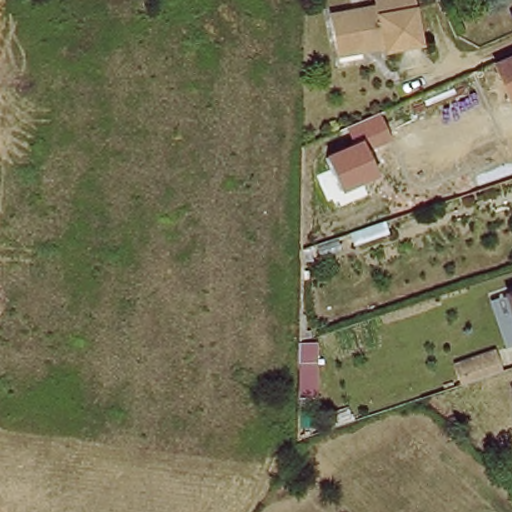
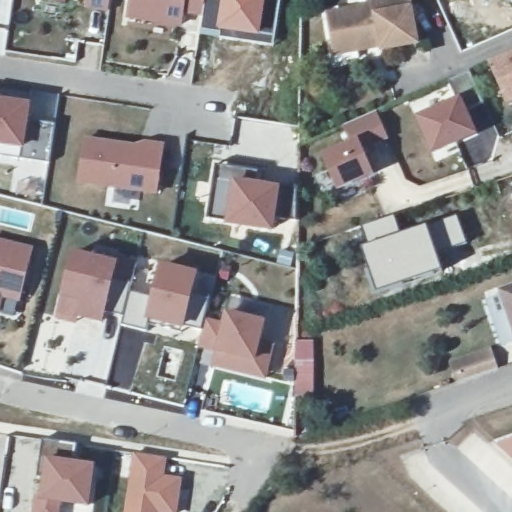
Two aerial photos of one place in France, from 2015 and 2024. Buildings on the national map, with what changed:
new [(56,0),(65,0),(65,1),(56,0)]
new [(82,8),(83,0),(108,0),(107,10),(82,8)]
new [(184,15),(182,29),(126,21),(130,0),(206,0),(203,18),(184,15)]
new [(200,35),(203,18),(206,0),(226,0),(283,0),(275,45),(200,35)]
unchanged [(329,19),(375,10),(373,1),(378,0),(410,0),(418,48),(383,54),(382,50),(365,54),(336,59),(335,51),(329,19)]
unchanged [(512,104),(508,105),(489,60),(512,52),(512,104)]
new [(470,71),(485,104),(465,113),(475,134),(433,153),(418,118),(457,101),(449,80),(470,71)]
new [(30,106),(28,120),(56,125),(50,164),(0,157),(0,101),(30,106)]
unchanged [(389,140),(365,149),(376,177),(340,193),(322,154),(350,140),(344,126),(377,113),(389,140)]
new [(136,145),(143,143),(165,145),(158,196),(78,187),(85,139),(136,145)]
new [(261,172),(258,185),(280,188),(298,189),(297,224),(276,222),(275,233),(226,228),(227,223),(207,220),(215,165),(261,172)]
unchanged [(351,244),(347,231),(382,219),(386,233),(351,244)]
new [(27,244),(17,295),(1,293),(0,299),(0,237),(27,244)]
unchanged [(318,258),(314,245),(336,239),(340,250),(318,258)]
new [(74,250),(120,262),(136,264),(129,294),(133,294),(151,300),(154,292),(161,263),(200,273),(195,295),(211,299),(206,319),(224,323),(227,312),(269,323),(264,340),(278,345),(267,381),(213,369),(216,354),(199,349),(203,331),(186,326),(185,330),(181,334),(150,325),(147,331),(123,325),(126,317),(106,314),(102,325),(80,319),(78,326),(56,320),(74,250)]
new [(512,333),(512,345),(501,348),(483,298),(497,291),(512,333)]
unchanged [(512,291),(512,327),(501,294),(512,291)]
unchanged [(296,386),(296,362),(296,343),(296,342),(297,342),(314,342),(315,386),(296,386)]
unchanged [(497,369),(465,380),(458,361),(491,350),(497,369)]
unchanged [(295,427),(296,409),(313,410),(313,427),(295,427)]
new [(512,459),(495,443),(512,437),(512,459)]
new [(36,498),(40,499),(43,478),(38,478),(44,440),(77,444),(75,462),(96,466),(91,509),(62,506),(62,512),(34,512),(36,498)]
new [(131,452),(167,457),(165,474),(182,477),(176,512),(123,512),(131,452)]

